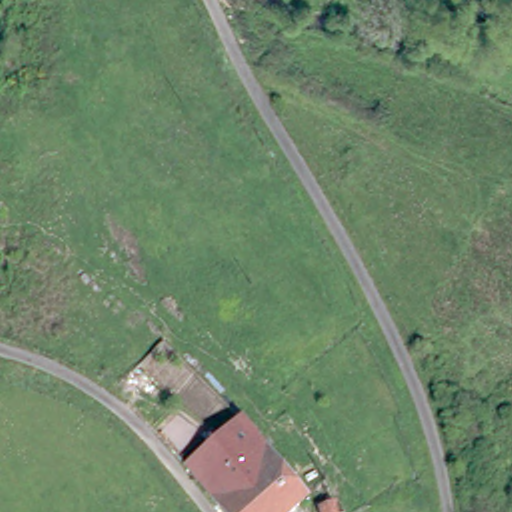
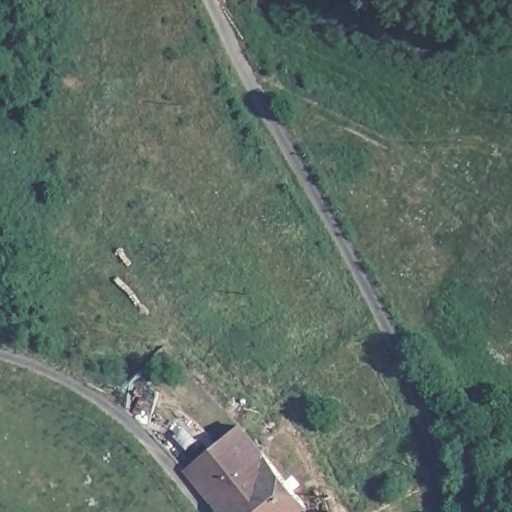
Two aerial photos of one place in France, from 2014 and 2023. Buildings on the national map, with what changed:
unchanged [(187,472),(237,428),(305,505),(297,512),(220,512),(187,472)]

